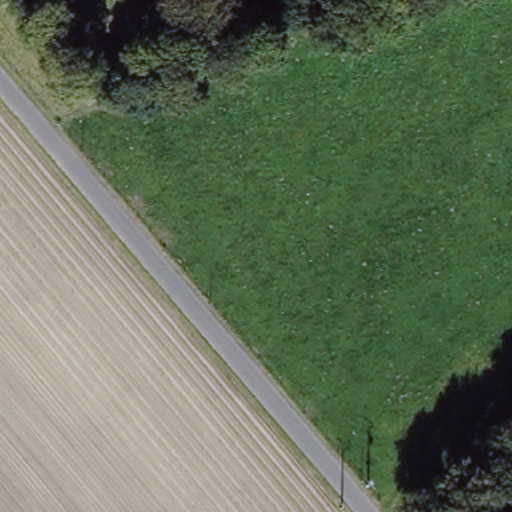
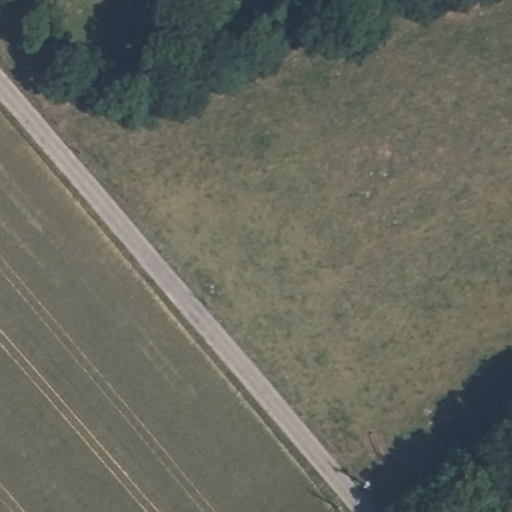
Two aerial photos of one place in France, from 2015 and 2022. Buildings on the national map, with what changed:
unchanged [(465,512),(437,512),(438,508),(465,509),(465,512)]

